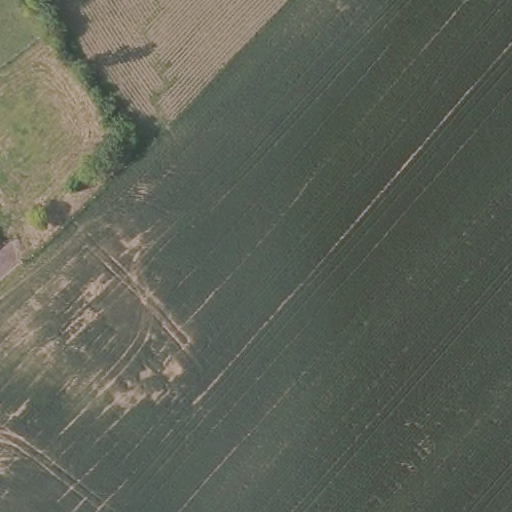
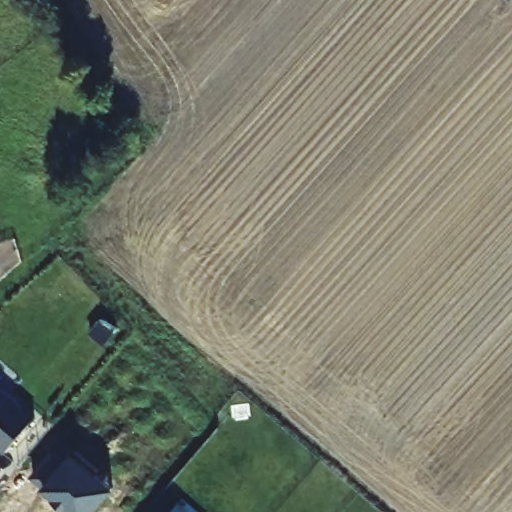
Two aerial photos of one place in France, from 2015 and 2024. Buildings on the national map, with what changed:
unchanged [(33,413),(3,447),(0,445),(0,384),(33,413)]
new [(30,476),(54,449),(67,460),(74,452),(116,488),(95,512),(72,512),(44,488),(30,476)]

